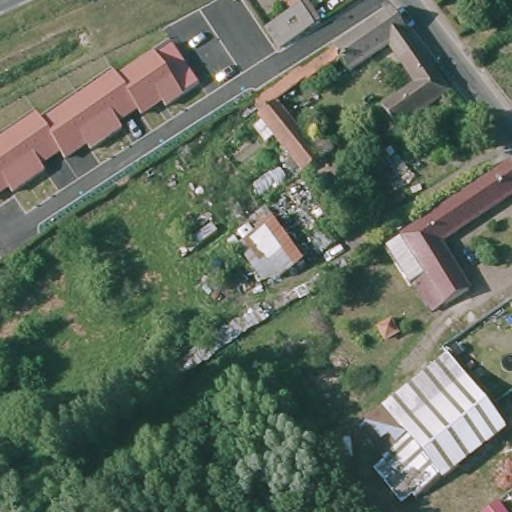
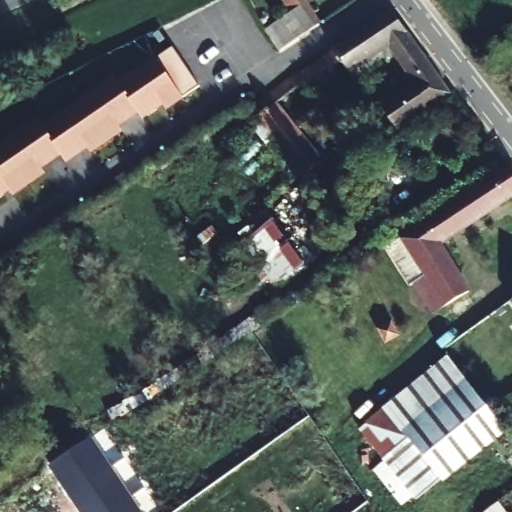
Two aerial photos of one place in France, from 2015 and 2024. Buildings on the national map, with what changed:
unchanged [(274,55),(260,35),(285,18),(273,0),(297,0),(315,27),(274,55)]
unchanged [(389,50),(348,76),(340,65),(306,88),(305,86),(275,108),(307,148),(320,140),(332,156),(305,178),(259,120),(260,120),(252,109),(299,75),(300,77),(390,15),(408,37),(407,38),(448,97),(396,134),(382,113),(416,90),(389,50)]
unchanged [(197,81),(181,92),(183,95),(165,106),(162,101),(141,116),(137,111),(120,123),(125,130),(92,151),(87,146),(66,161),(60,154),(43,166),(48,172),(15,194),(10,188),(0,195),(0,139),(39,114),(43,121),(116,73),(120,79),(156,54),(158,56),(174,46),(197,81)]
unchanged [(504,170),(512,180),(512,197),(435,249),(464,297),(428,317),(408,288),(405,290),(389,266),(380,252),(395,242),(504,170)]
unchanged [(304,263),(288,273),(287,272),(278,278),(272,275),(264,278),(238,243),(273,220),(304,263)]
unchanged [(512,296),(512,299),(510,297),(512,296)]
demolished [(501,382),(496,386),(487,373),(492,369),(482,355),(497,345),(512,367),(512,384),(505,388),(501,382)]
unchanged [(443,484),(442,482),(415,504),(358,435),(385,414),(448,362),(505,434),(443,484)]
new [(49,466),(91,436),(143,512),(80,512),(49,466)]
unchanged [(501,506),(512,498),(512,511),(511,512),(506,512),(501,506)]

